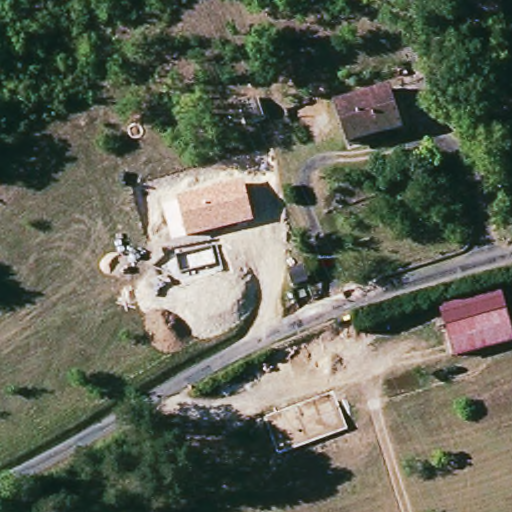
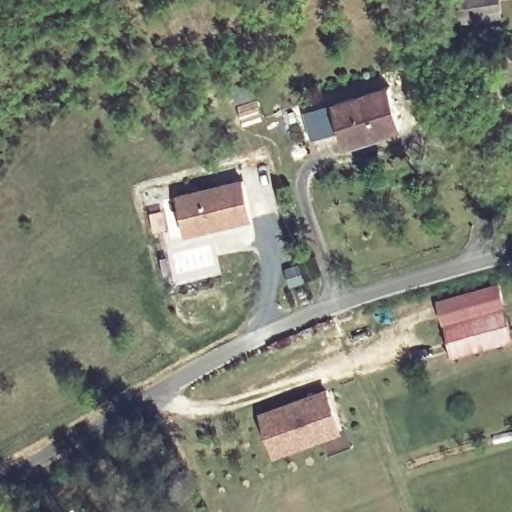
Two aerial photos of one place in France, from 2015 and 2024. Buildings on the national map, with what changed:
unchanged [(512,11),(465,19),(461,0),(510,0),(512,11)]
unchanged [(440,25),(427,27),(425,10),(438,9),(440,25)]
unchanged [(460,87),(428,96),(423,77),(455,70),(460,87)]
unchanged [(352,142),(342,105),(398,90),(407,128),(352,142)]
unchanged [(243,179),(253,220),(186,236),(177,195),(243,179)]
unchanged [(508,310),(452,326),(446,307),(503,290),(508,310)]
unchanged [(511,312),(512,314),(512,345),(462,359),(453,329),(511,312)]
new [(261,413),(330,388),(345,430),(276,455),(261,413)]

